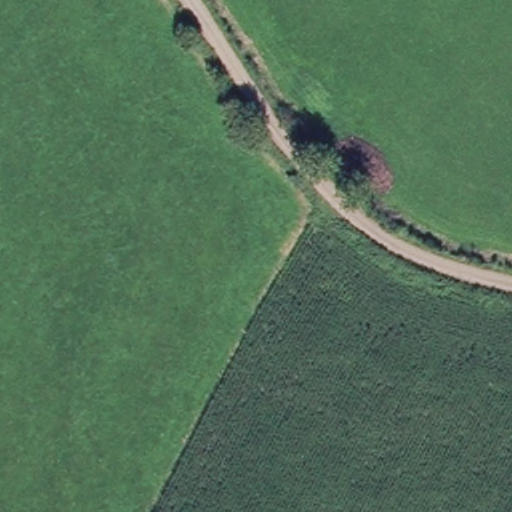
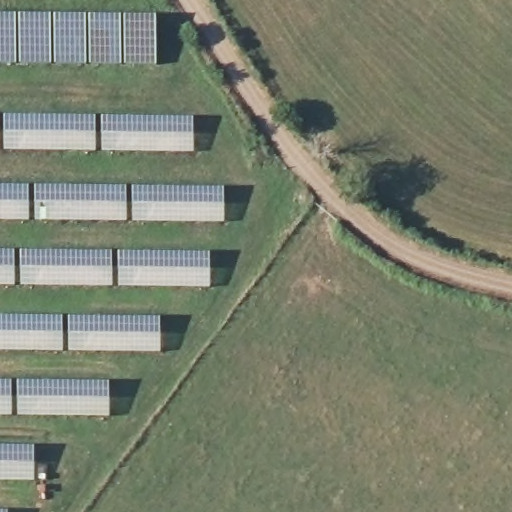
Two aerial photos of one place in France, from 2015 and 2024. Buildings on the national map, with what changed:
new [(159,22),(157,71),(0,69),(0,21),(159,22)]
new [(97,118),(96,151),(6,150),(7,117),(97,118)]
new [(104,152),(104,118),(194,119),(194,153),(104,152)]
new [(30,187),(30,220),(0,220),(0,187),(30,187)]
new [(127,188),(127,221),(37,221),(37,188),(127,188)]
new [(134,222),(135,188),(225,189),(224,222),(134,222)]
new [(114,253),(113,286),(40,285),(40,278),(37,278),(37,285),(22,285),(22,252),(114,253)]
new [(16,253),(16,272),(4,272),(4,285),(0,285),(0,253),(16,253)]
new [(211,254),(211,287),(120,287),(121,253),(211,254)]
new [(72,351),(0,342),(0,317),(162,321),(161,353),(72,351)]
new [(0,416),(0,382),(13,382),(12,416),(0,416)]
new [(107,383),(107,417),(20,416),(20,382),(107,383)]
new [(33,448),(32,481),(0,481),(0,448),(33,448)]

